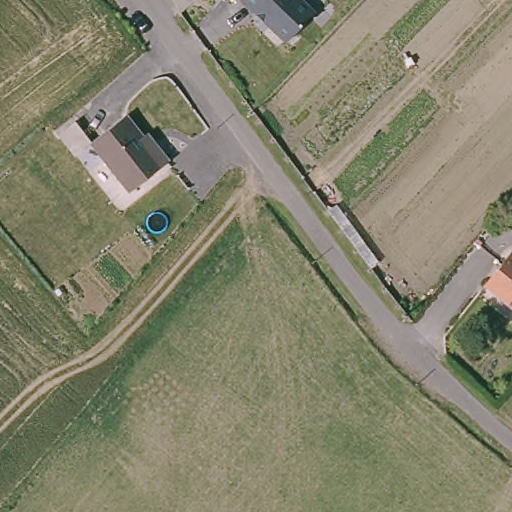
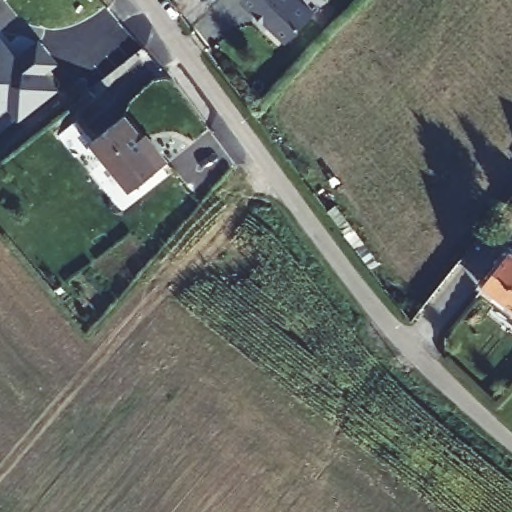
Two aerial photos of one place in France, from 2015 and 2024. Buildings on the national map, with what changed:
unchanged [(316,13),(284,43),(241,0),(303,0),(316,13)]
new [(18,61),(39,45),(65,78),(11,122),(0,108),(0,38),(18,61)]
unchanged [(170,161),(129,191),(91,143),(127,114),(143,135),(148,132),(170,161)]
unchanged [(509,245),(512,248),(512,303),(481,278),(509,245)]

